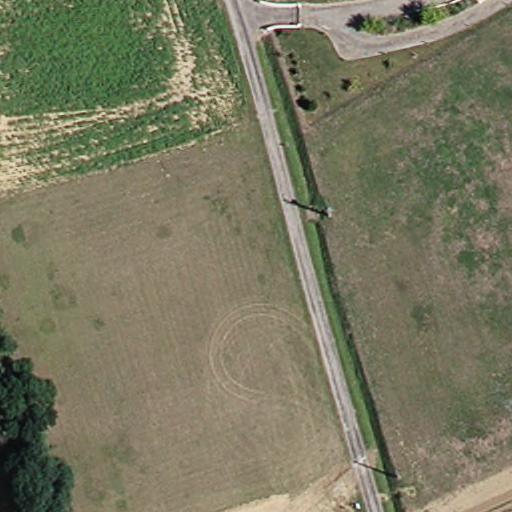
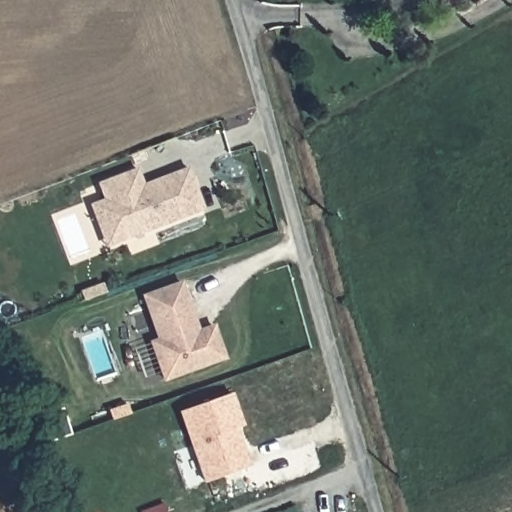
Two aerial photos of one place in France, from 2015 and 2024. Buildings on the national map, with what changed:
new [(89,205),(103,200),(97,183),(135,169),(141,183),(189,167),(204,211),(106,248),(89,205)]
new [(164,381),(150,344),(157,341),(142,296),(182,281),(200,328),(212,324),(224,360),(164,381)]
new [(245,427),(239,429),(252,466),(203,484),(177,412),(232,392),(245,427)]

